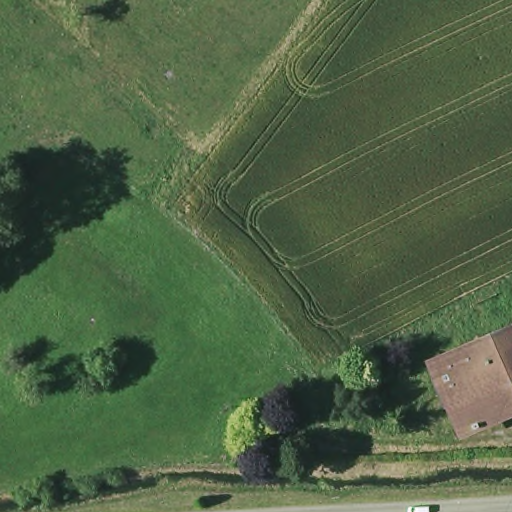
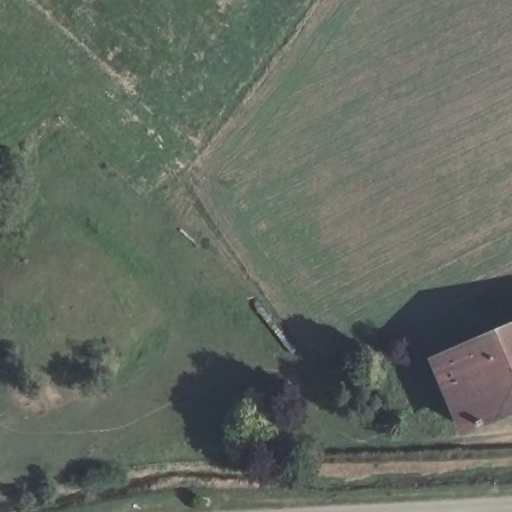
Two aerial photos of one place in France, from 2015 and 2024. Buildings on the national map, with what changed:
unchanged [(423,358),(512,319),(512,399),(453,425),(423,358)]

